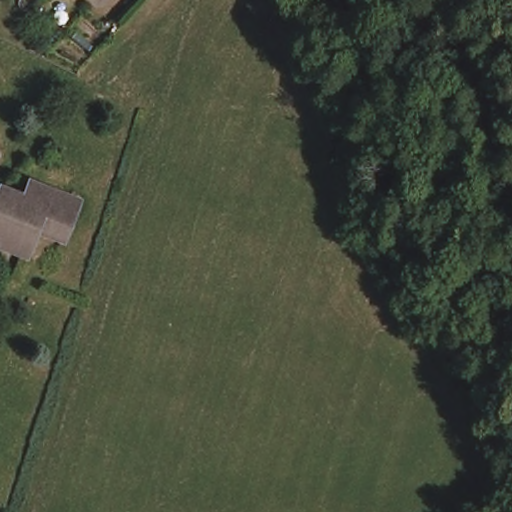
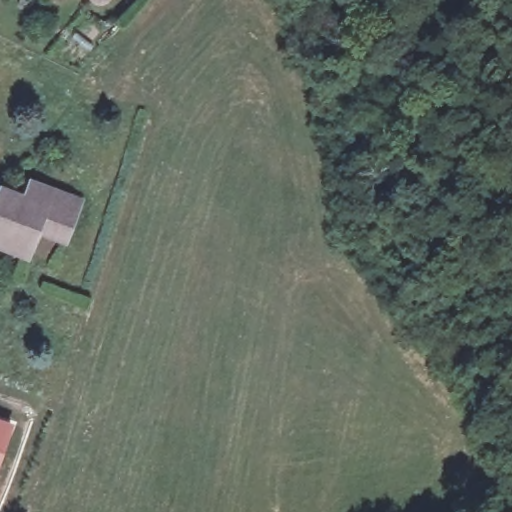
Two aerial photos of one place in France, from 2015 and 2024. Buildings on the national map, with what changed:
unchanged [(31,216),(37,200),(82,219),(68,251),(42,240),(30,267),(0,254),(0,225),(8,206),(31,216)]
new [(0,460),(0,419),(12,424),(0,460)]

